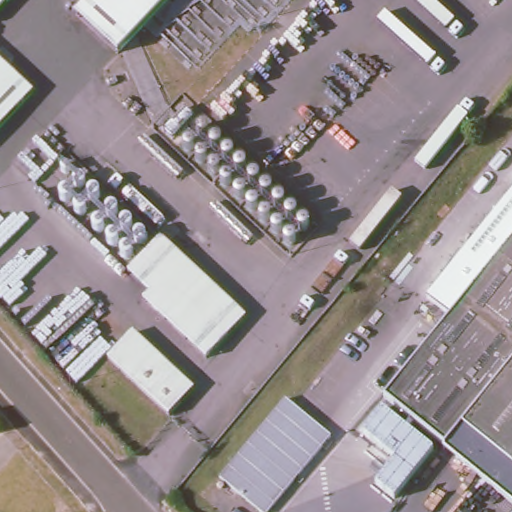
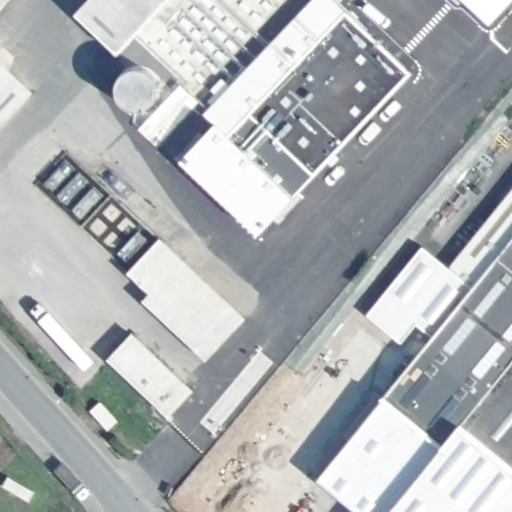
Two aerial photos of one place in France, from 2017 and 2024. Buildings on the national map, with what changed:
unchanged [(0,4),(0,0),(4,0),(0,4)]
unchanged [(92,0),(170,0),(122,52),(80,13),(92,0)]
new [(290,197),(205,115),(313,0),(330,0),(408,74),(290,197)]
new [(512,2),(490,25),(465,0),(512,0),(512,2)]
unchanged [(30,87),(0,120),(0,59),(30,87)]
new [(200,101),(157,145),(138,128),(180,83),(200,101)]
new [(180,161),(215,124),(290,197),(292,198),(258,234),(180,161)]
new [(153,240),(133,262),(55,194),(68,176),(54,163),(60,154),(153,240)]
unchanged [(444,439),(383,389),(485,268),(461,248),(512,187),(512,459),(462,418),(444,439)]
unchanged [(143,297),(149,290),(127,270),(158,235),(244,314),(206,355),(143,297)]
new [(447,266),(461,248),(485,268),(430,334),(417,325),(402,343),(365,314),(423,245),(447,266)]
unchanged [(193,387),(169,413),(107,356),(132,330),(193,387)]
new [(512,512),(357,512),(316,480),(387,392),(444,439),(442,441),(512,498),(512,512)]
demolished [(332,438),(271,512),(264,512),(222,477),(286,399),(332,438)]
unchanged [(444,439),(462,418),(512,459),(512,498),(442,441),(444,439)]

